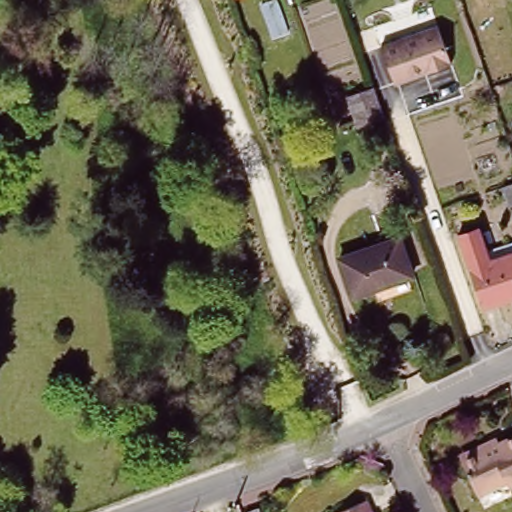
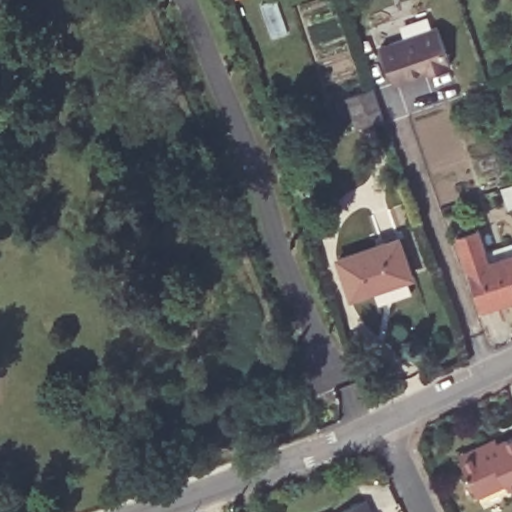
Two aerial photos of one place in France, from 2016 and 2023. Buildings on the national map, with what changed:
unchanged [(441,25),(454,62),(397,81),(384,44),(441,25)]
unchanged [(388,127),(364,137),(353,105),(377,96),(388,127)]
unchanged [(511,210),(503,187),(512,184),(512,209),(511,210)]
unchanged [(512,247),(512,302),(485,311),(460,240),(479,233),(486,256),(512,247)]
unchanged [(401,244),(413,282),(353,302),(341,263),(401,244)]
unchanged [(503,483),(474,496),(457,460),(455,454),(494,436),(496,442),(512,435),(512,486),(506,488),(503,483)]
unchanged [(377,512),(340,512),(371,498),(377,512)]

